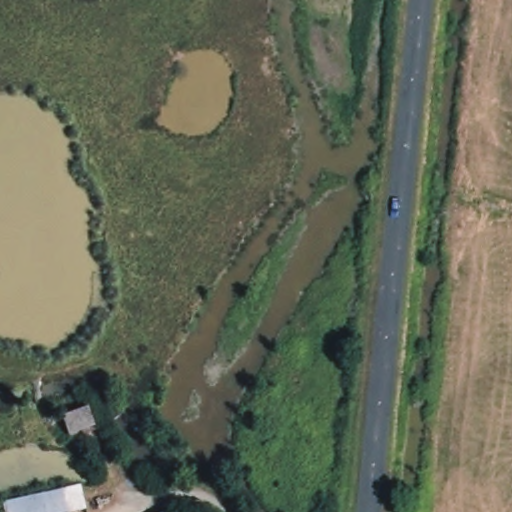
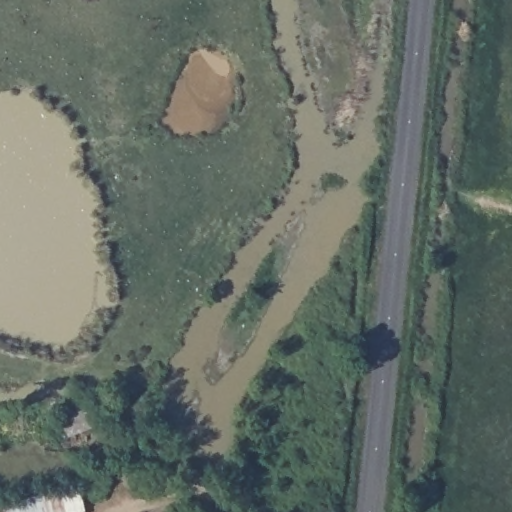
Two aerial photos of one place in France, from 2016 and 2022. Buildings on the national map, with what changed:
unchanged [(83,512),(2,512),(0,505),(0,502),(80,486),(83,512)]

